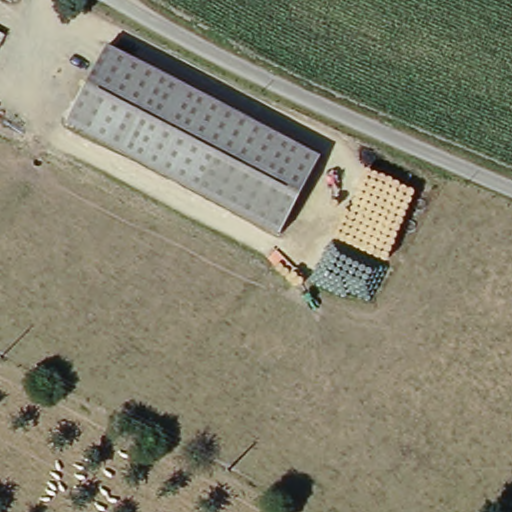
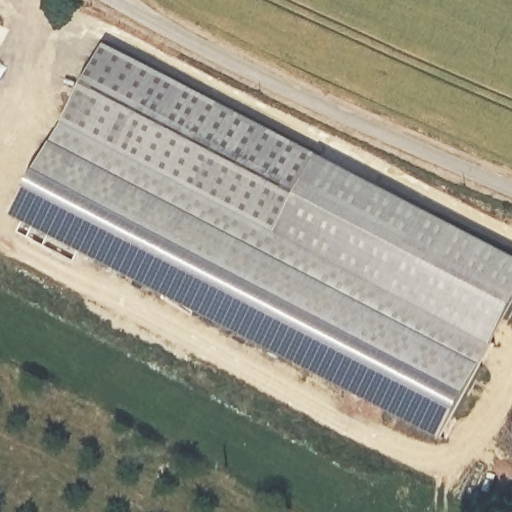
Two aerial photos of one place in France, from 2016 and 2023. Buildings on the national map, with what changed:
new [(512,256),(512,308),(445,440),(18,218),(107,45),(512,256)]
demolished [(102,51),(315,161),(276,240),(62,129),(102,51)]

